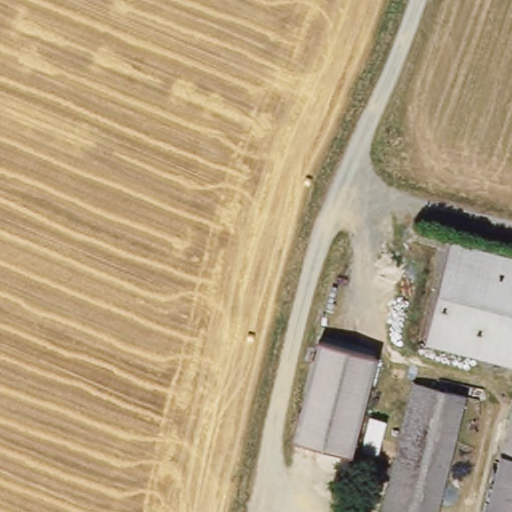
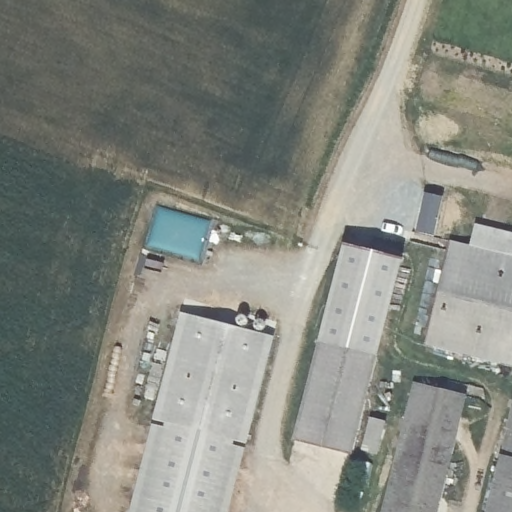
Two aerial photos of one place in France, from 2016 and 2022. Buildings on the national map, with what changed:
new [(475,224),(512,232),(512,256),(469,245),(475,224)]
unchanged [(445,240),(512,256),(512,367),(419,345),(445,240)]
new [(352,453),(293,438),(342,244),(401,259),(352,453)]
new [(175,320),(267,342),(241,449),(229,446),(228,451),(213,512),(128,512),(175,320)]
demolished [(387,355),(368,420),(360,453),(306,440),(329,342),(387,355)]
unchanged [(388,512),(381,512),(411,386),(419,388),(388,512)]
unchanged [(463,398),(435,512),(388,512),(419,388),(463,398)]
unchanged [(503,455),(512,417),(512,512),(489,512),(503,455)]
new [(368,421),(383,425),(375,456),(360,453),(368,421)]
new [(228,451),(240,454),(226,512),(213,512),(228,451)]

